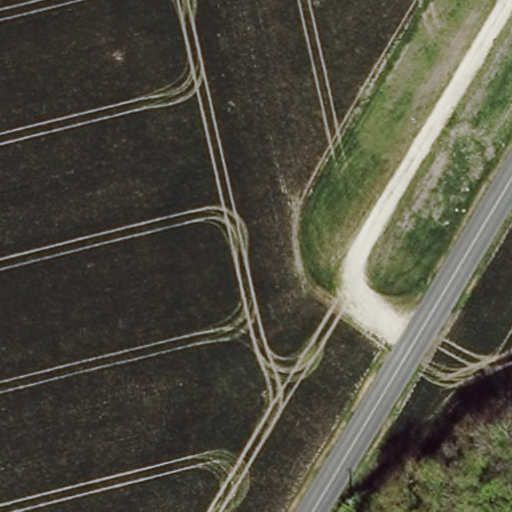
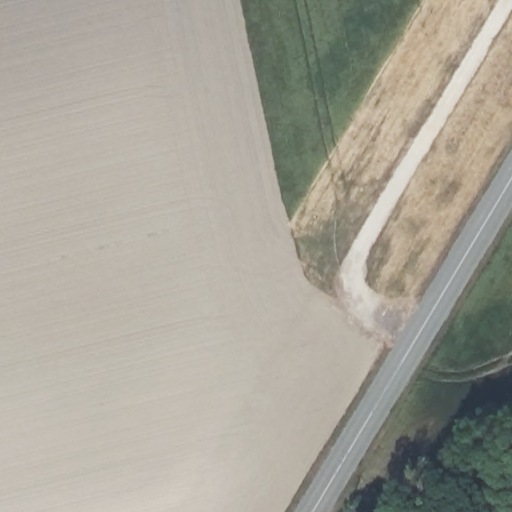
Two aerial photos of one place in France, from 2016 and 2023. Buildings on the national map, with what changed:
[]

